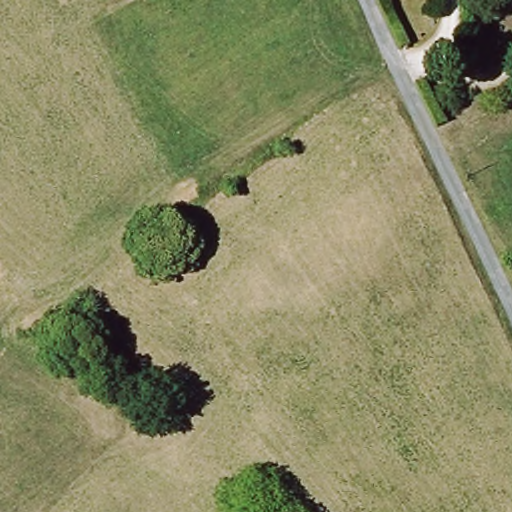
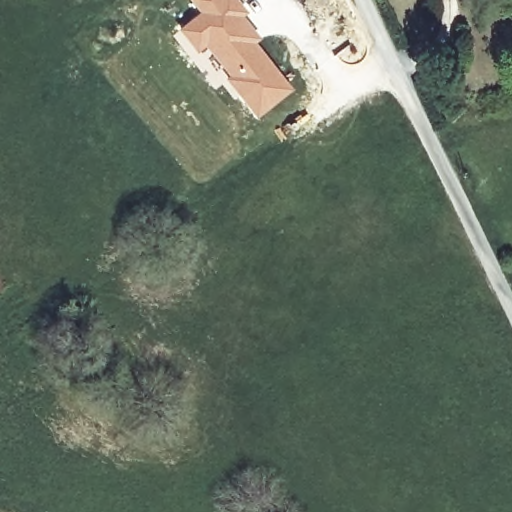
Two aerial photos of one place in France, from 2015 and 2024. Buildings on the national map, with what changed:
new [(193,0),(236,0),(246,13),(241,16),(251,29),(259,39),(253,43),(290,90),(256,116),(228,79),(231,76),(206,43),(197,51),(181,30),(203,12),(193,0)]

